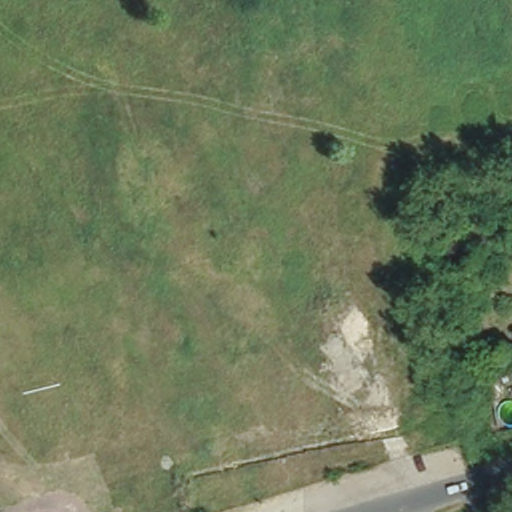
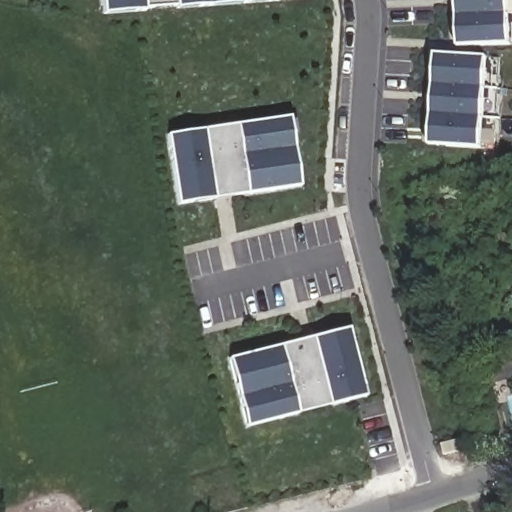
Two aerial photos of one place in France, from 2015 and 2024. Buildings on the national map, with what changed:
new [(100,0),(250,0),(100,11),(100,0)]
new [(456,15),(455,5),(455,0),(507,0),(508,43),(465,45),(457,45),(456,33),(456,15)]
new [(508,43),(507,0),(512,0),(512,43),(508,43)]
new [(429,134),(430,115),(431,105),(432,86),(433,76),(434,53),(486,57),(480,149),(436,146),(428,145),(429,134)]
new [(486,57),(498,57),(493,149),(480,149),(486,57)]
new [(166,134),(203,129),(235,124),(279,117),(288,116),(298,186),(290,187),(230,196),(176,204),(175,195),(166,134)]
new [(253,423),(244,426),(227,357),(235,356),(293,341),(347,326),(349,335),(365,395),(328,404),(297,412),(253,423)]
unchanged [(468,352),(456,354),(452,342),(464,338),(468,352)]

